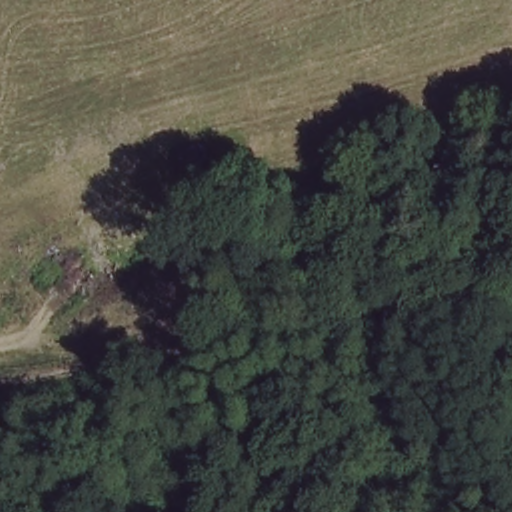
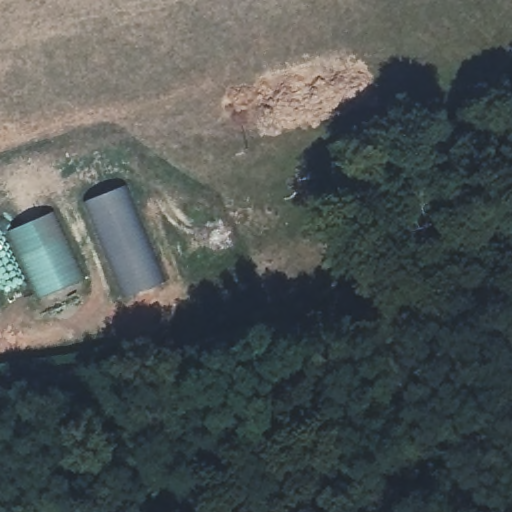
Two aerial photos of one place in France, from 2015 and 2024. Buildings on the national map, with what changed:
new [(123,299),(83,202),(120,187),(161,283),(123,299)]
new [(55,209),(86,272),(39,295),(8,233),(55,209)]
new [(1,298),(0,298),(0,295),(1,298)]

